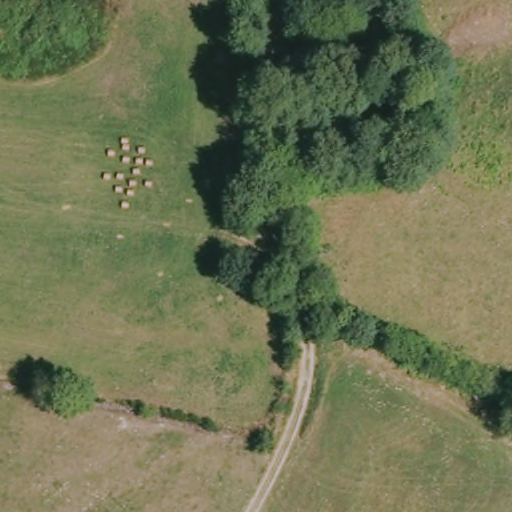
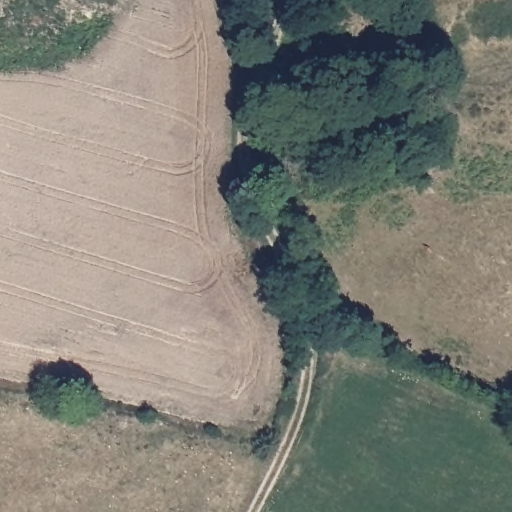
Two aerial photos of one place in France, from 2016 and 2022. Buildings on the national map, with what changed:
unchanged [(247,2),(244,0),(248,0),(247,2)]

